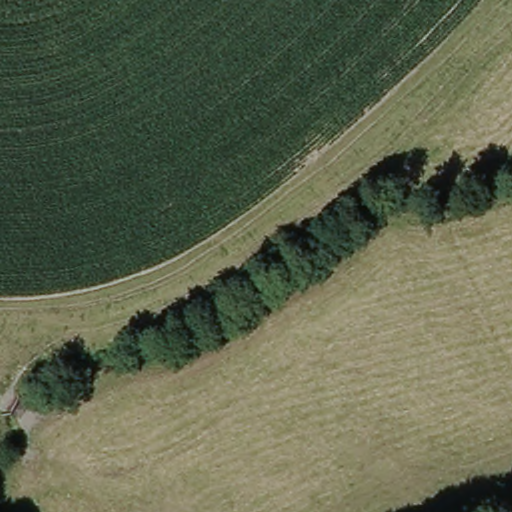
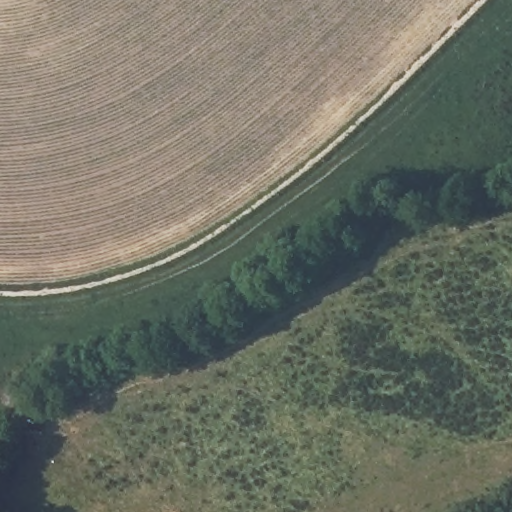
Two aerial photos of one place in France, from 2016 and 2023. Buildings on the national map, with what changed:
[]

